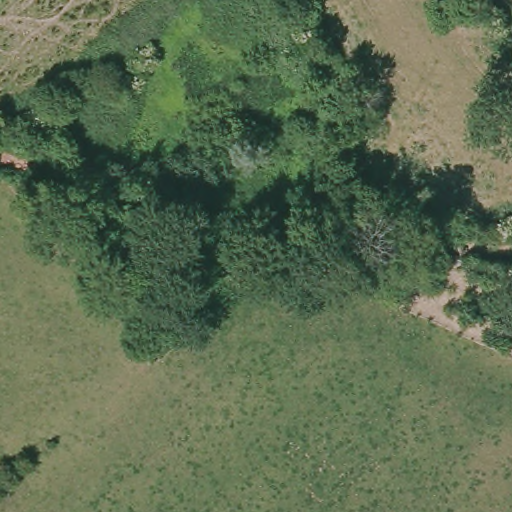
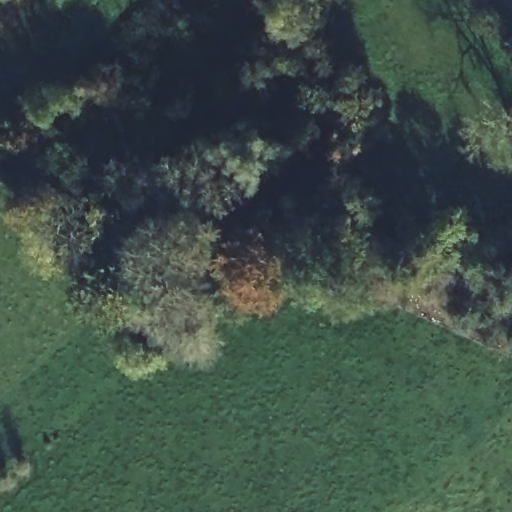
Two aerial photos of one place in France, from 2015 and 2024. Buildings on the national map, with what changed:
[]

